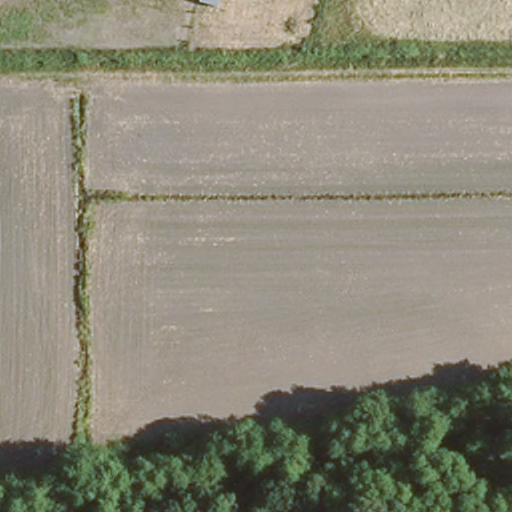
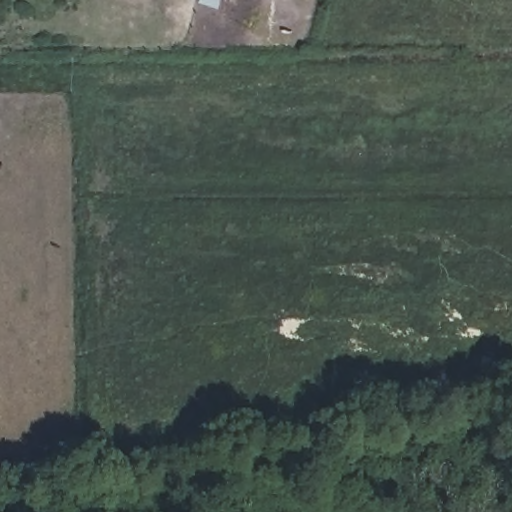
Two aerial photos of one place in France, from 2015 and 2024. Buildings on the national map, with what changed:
unchanged [(218,0),(215,11),(196,5),(197,0),(218,0)]

